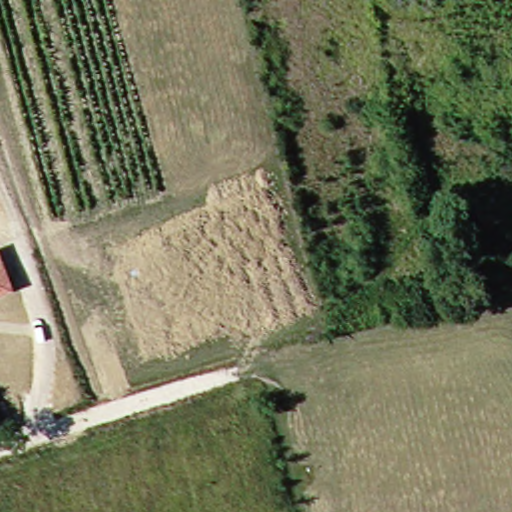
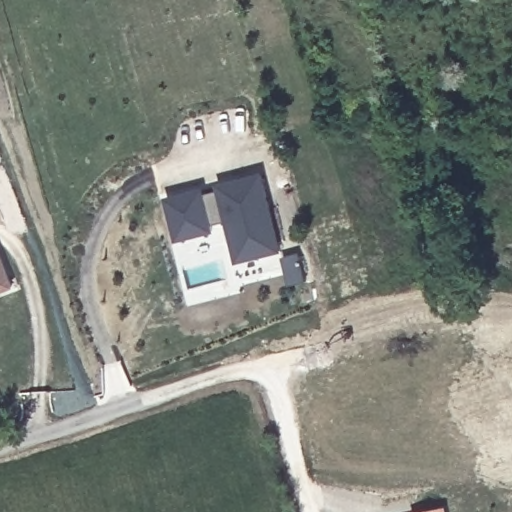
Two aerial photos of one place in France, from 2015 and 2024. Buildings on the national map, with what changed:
new [(216,234),(175,245),(164,201),(203,189),(205,195),(217,192),(216,187),(262,174),(283,252),(236,265),(224,223),(213,225),(216,234)]
unchanged [(0,254),(13,288),(0,292),(0,254)]
new [(419,512),(447,507),(448,512),(419,512)]

